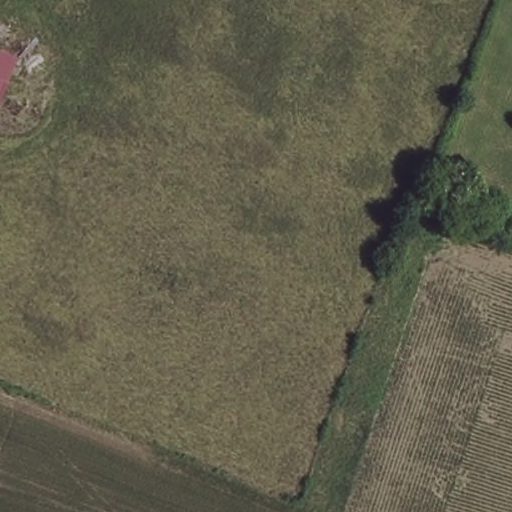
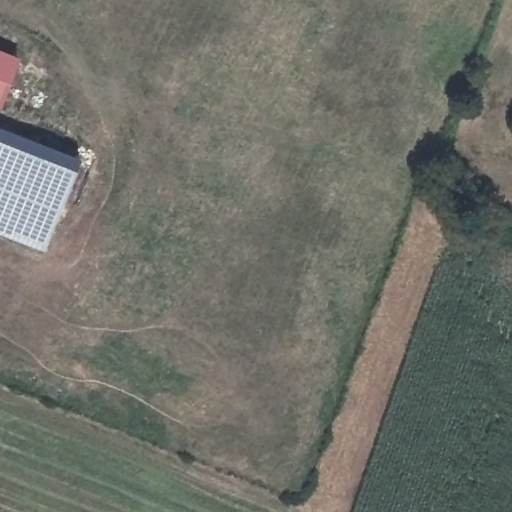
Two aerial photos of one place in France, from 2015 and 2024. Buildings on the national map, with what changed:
demolished [(29,44),(0,29),(0,24),(6,14),(41,30),(29,44)]
unchanged [(0,50),(14,54),(1,104),(0,103),(0,50)]
demolished [(34,118),(8,98),(37,56),(66,73),(34,118)]
new [(46,252),(0,234),(0,128),(78,158),(46,252)]

